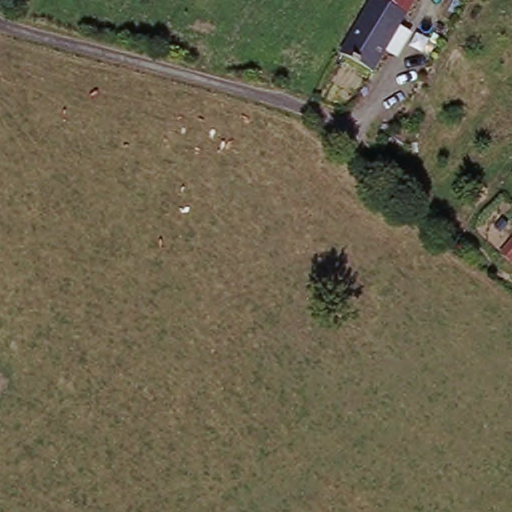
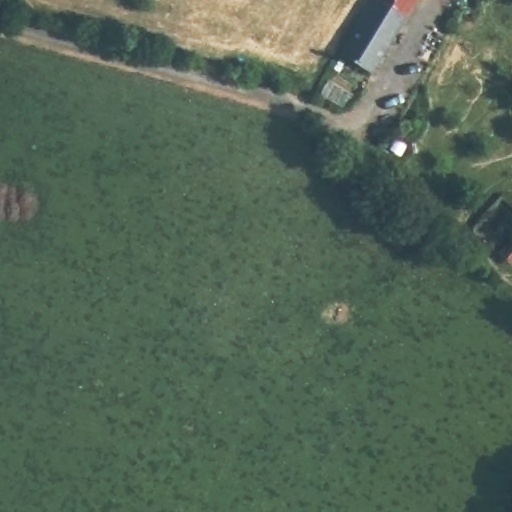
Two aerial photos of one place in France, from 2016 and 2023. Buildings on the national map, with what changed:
unchanged [(381,3),(382,0),(424,0),(411,25),(381,3)]
unchanged [(411,25),(381,80),(349,62),(381,3),(411,25)]
unchanged [(512,250),(512,262),(507,258),(512,250)]

